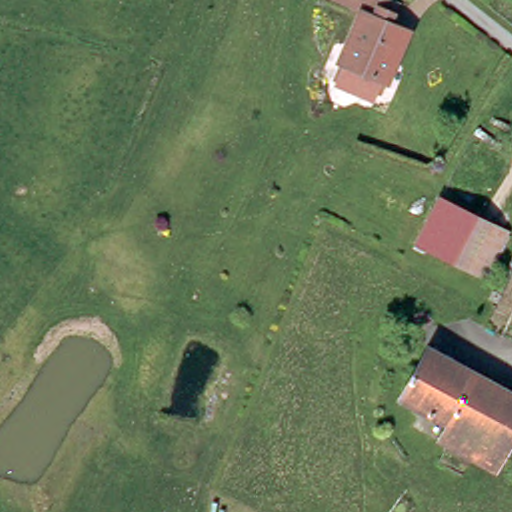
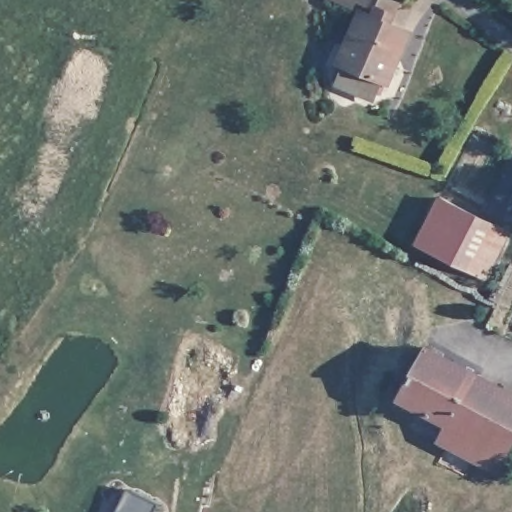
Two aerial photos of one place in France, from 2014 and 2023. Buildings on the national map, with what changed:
unchanged [(373,100),(337,84),(367,13),(372,0),(379,0),(395,6),(387,23),(402,30),(373,100)]
unchanged [(422,253),(445,205),(478,221),(454,269),(422,253)]
unchanged [(478,221),(507,236),(482,283),(454,269),(478,221)]
unchanged [(455,430),(408,402),(435,352),(512,395),(512,453),(500,475),(447,446),(455,430)]
new [(158,502),(154,512),(115,512),(127,487),(158,502)]

